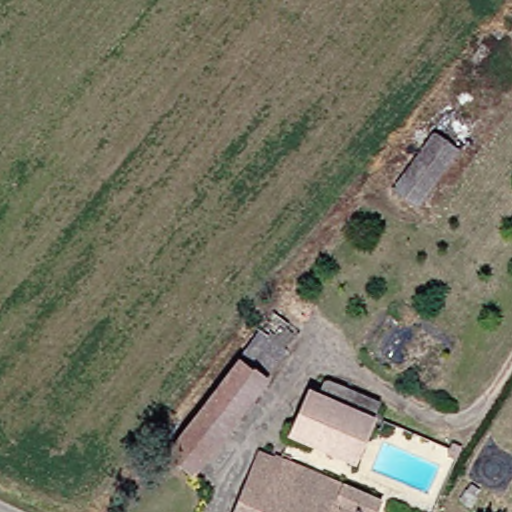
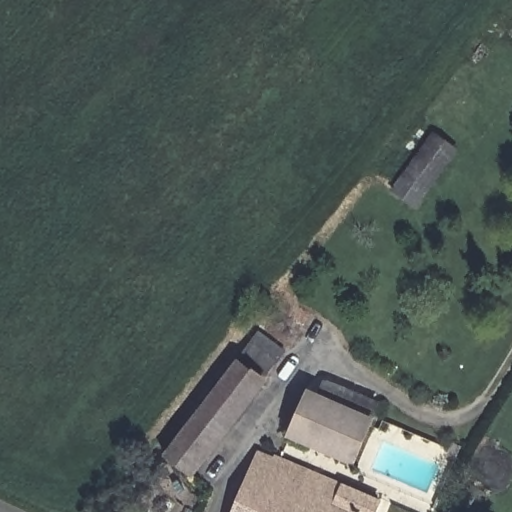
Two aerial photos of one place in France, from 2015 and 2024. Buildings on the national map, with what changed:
unchanged [(457,149),(415,206),(393,190),(435,133),(457,149)]
unchanged [(239,350),(260,323),(285,343),(264,369),(239,350)]
unchanged [(264,369),(190,465),(165,446),(239,350),(264,369)]
unchanged [(304,400),(310,386),(363,410),(357,424),(337,468),(275,441),(294,396),(304,400)]
unchanged [(264,458),(265,455),(370,501),(365,512),(223,512),(248,452),(264,458)]

